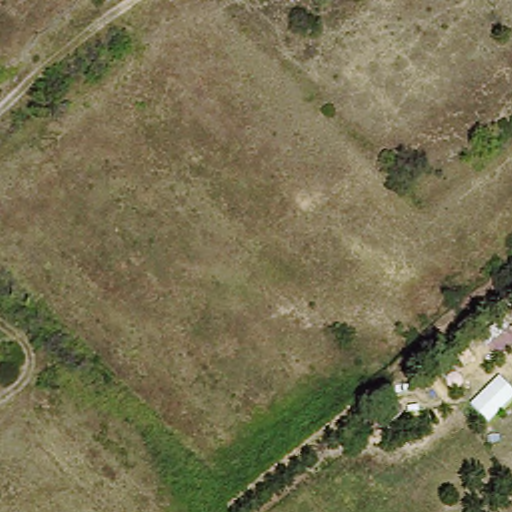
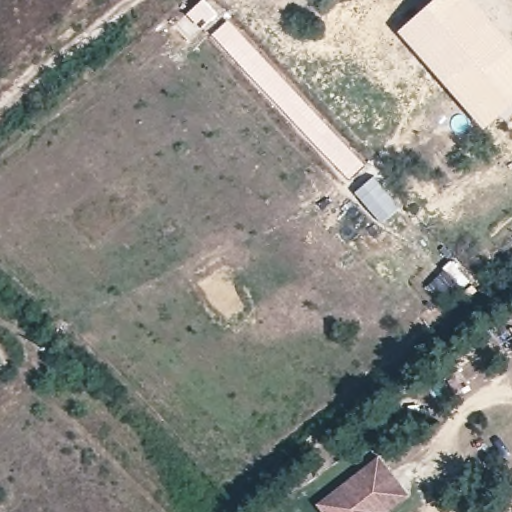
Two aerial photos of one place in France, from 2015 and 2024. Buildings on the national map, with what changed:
new [(432,0),(473,0),(512,43),(512,105),(485,128),(398,30),(432,0)]
new [(410,496),(388,512),(323,512),(317,504),(378,455),(410,496)]

